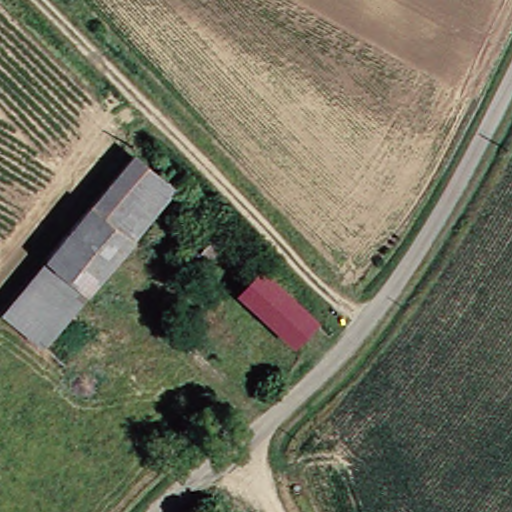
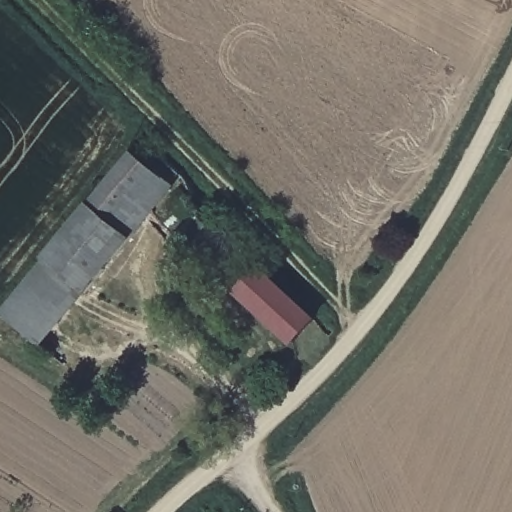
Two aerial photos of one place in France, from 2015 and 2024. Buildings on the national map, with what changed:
unchanged [(122,154),(145,173),(106,222),(123,235),(81,287),(40,254),(122,154)]
unchanged [(106,222),(145,173),(162,187),(142,211),(123,235),(106,222)]
unchanged [(162,187),(219,234),(197,259),(142,211),(162,187)]
unchanged [(1,301),(40,254),(81,287),(42,336),(1,301)]
unchanged [(255,263),(309,316),(290,335),(237,282),(255,263)]

